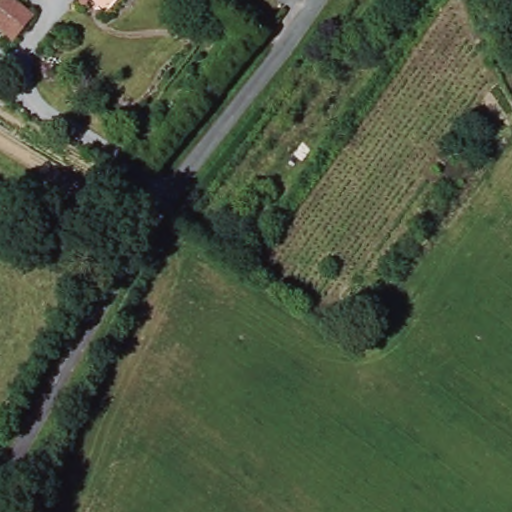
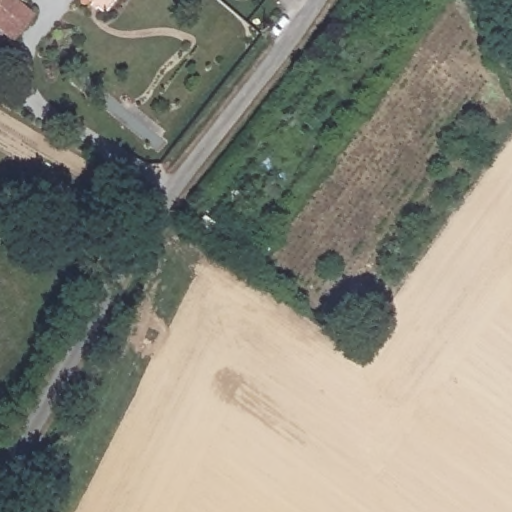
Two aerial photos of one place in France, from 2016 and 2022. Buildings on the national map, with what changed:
unchanged [(13,39),(0,29),(0,0),(21,0),(35,11),(13,39)]

